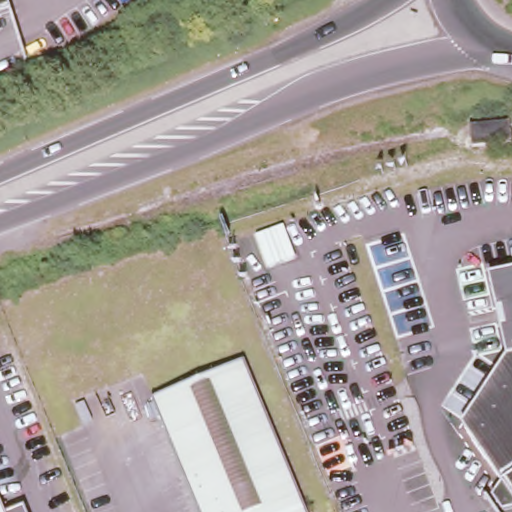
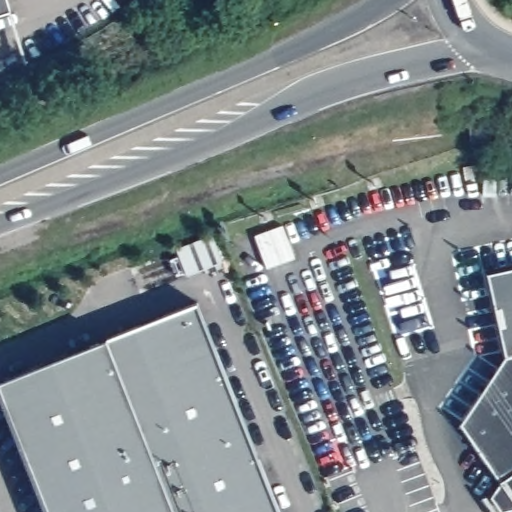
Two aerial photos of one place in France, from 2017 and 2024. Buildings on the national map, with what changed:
unchanged [(7,0),(11,12),(0,16),(0,0),(7,0)]
unchanged [(487,275),(512,269),(512,354),(505,356),(487,275)]
new [(196,308),(277,512),(46,512),(0,397),(0,388),(196,308)]
demolished [(248,359),(308,512),(200,512),(155,395),(248,359)]
unchanged [(495,493),(505,477),(470,425),(512,362),(512,509),(507,510),(495,493)]
demolished [(6,512),(0,512),(0,498),(6,512)]
demolished [(23,506),(26,512),(7,512),(23,506)]

